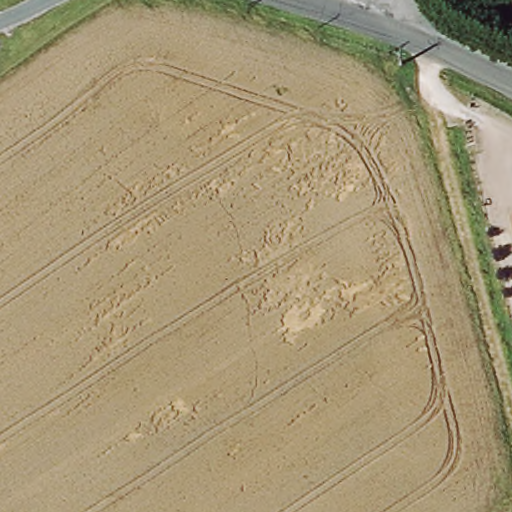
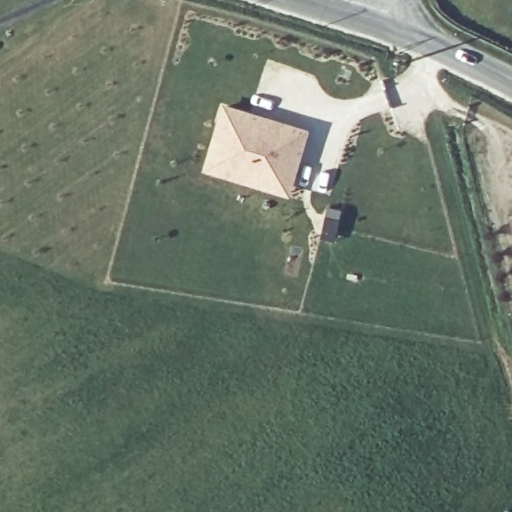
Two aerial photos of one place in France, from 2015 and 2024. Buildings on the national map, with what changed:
new [(205,171),(224,103),(310,129),(290,196),(205,171)]

